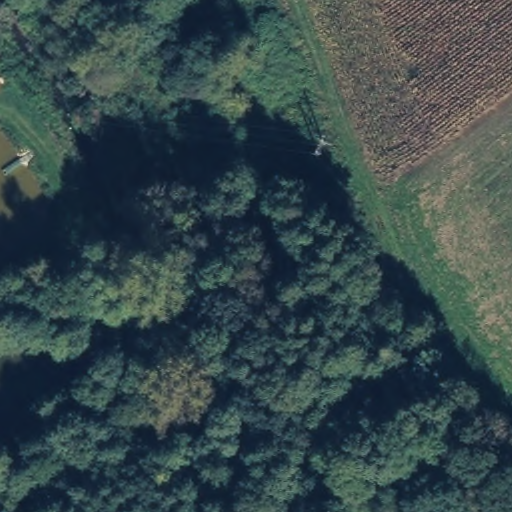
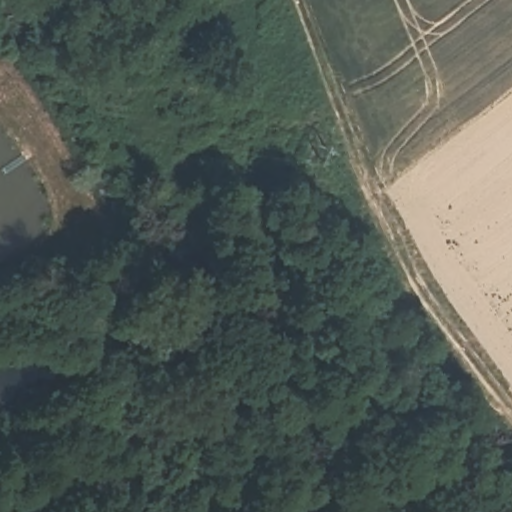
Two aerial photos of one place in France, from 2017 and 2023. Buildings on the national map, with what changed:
[]

